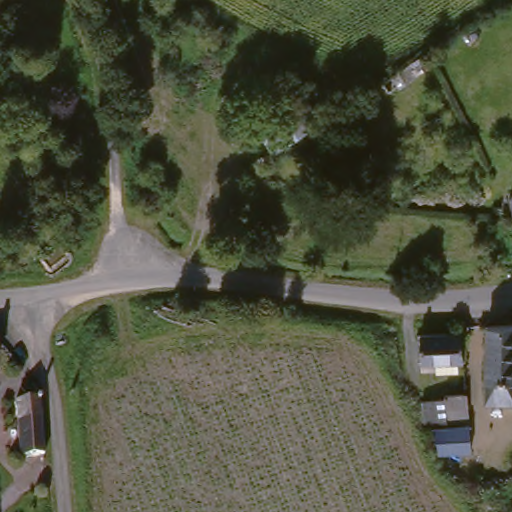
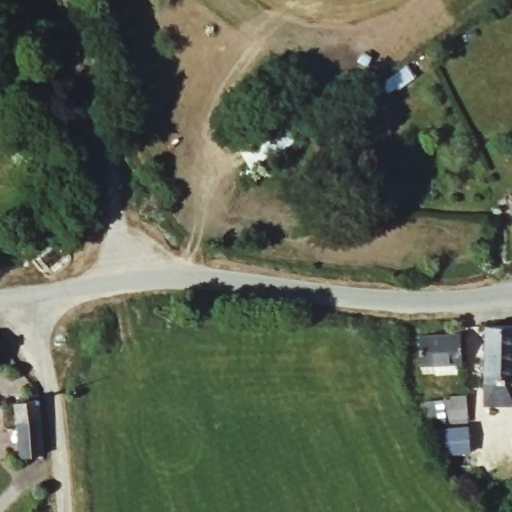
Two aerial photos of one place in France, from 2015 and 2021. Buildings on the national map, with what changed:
unchanged [(508,198),(512,197),(512,212),(508,198)]
unchanged [(504,405),(483,403),(486,325),(512,325),(512,405),(504,405)]
unchanged [(439,374),(439,364),(425,365),(424,335),(464,334),(466,363),(461,363),(461,373),(439,374)]
unchanged [(423,403),(443,400),(443,396),(465,395),(467,422),(446,423),(425,425),(423,403)]
unchanged [(43,454),(20,456),(15,402),(39,398),(43,454)]

